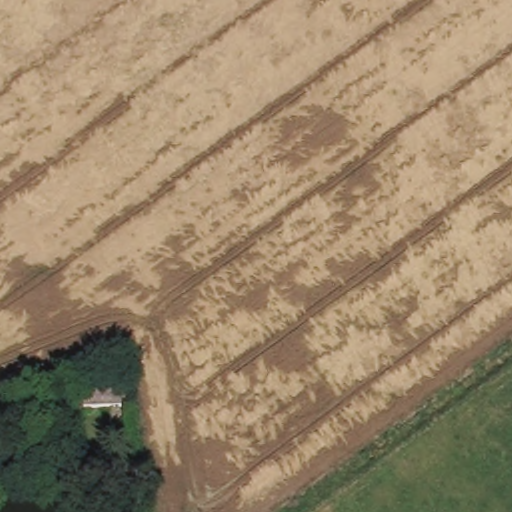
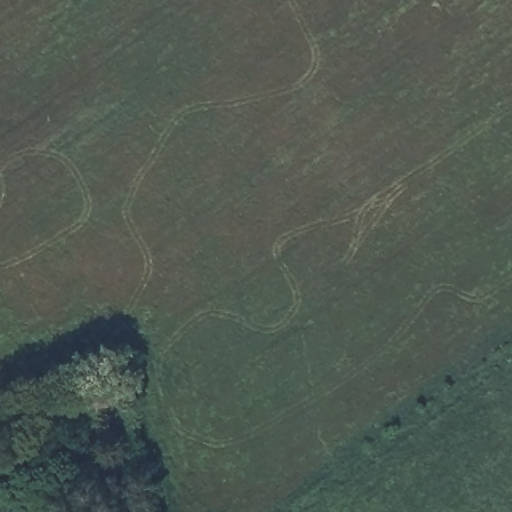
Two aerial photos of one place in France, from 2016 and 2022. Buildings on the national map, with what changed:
unchanged [(122,407),(85,409),(84,391),(95,390),(94,384),(119,379),(122,407)]

